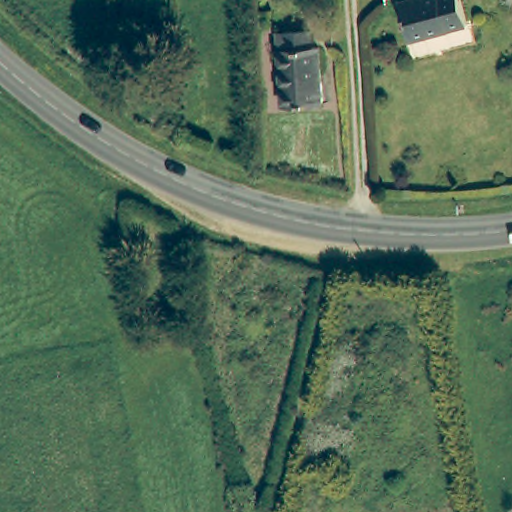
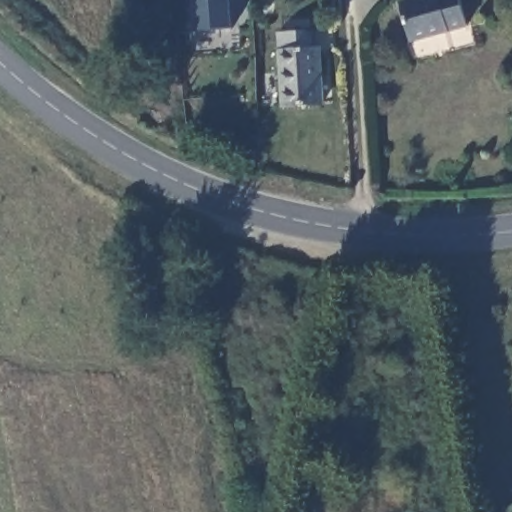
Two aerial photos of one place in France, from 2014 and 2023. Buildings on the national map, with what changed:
new [(193,30),(191,0),(232,0),(234,27),(193,30)]
unchanged [(466,24),(409,41),(398,2),(405,0),(460,0),(466,24)]
unchanged [(282,106),(278,33),(309,31),(311,48),(319,48),(322,103),(282,106)]

